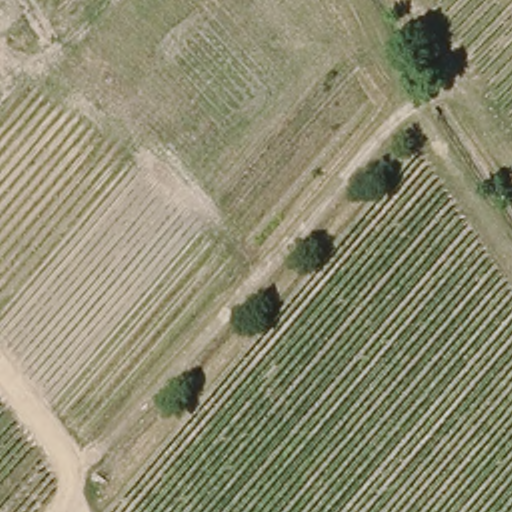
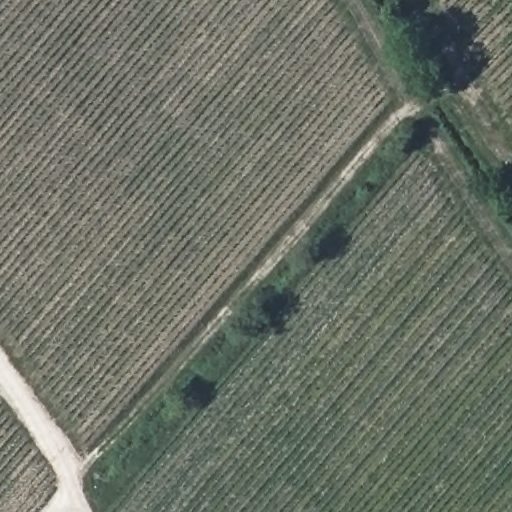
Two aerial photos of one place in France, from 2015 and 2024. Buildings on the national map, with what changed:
[]

